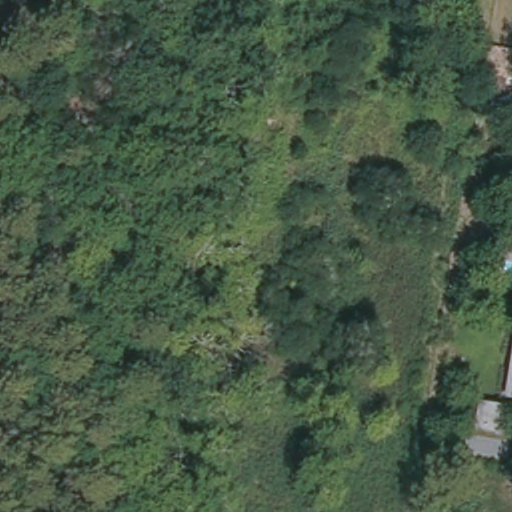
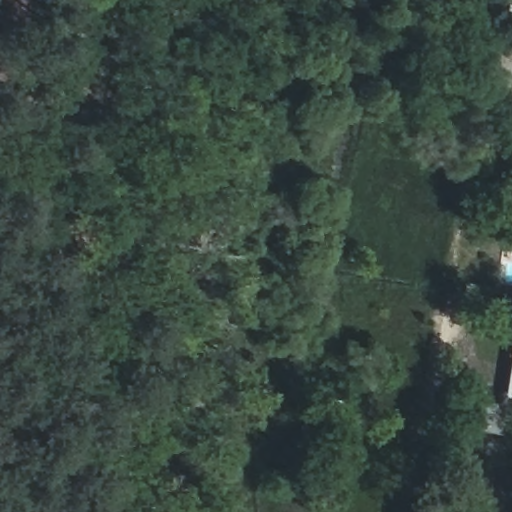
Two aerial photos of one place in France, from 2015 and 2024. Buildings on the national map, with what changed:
unchanged [(512,366),(512,388),(509,387),(512,366)]
unchanged [(500,436),(470,432),(475,402),(506,407),(500,436)]

